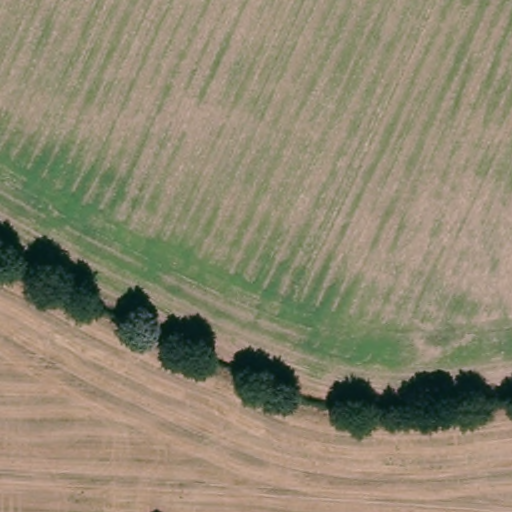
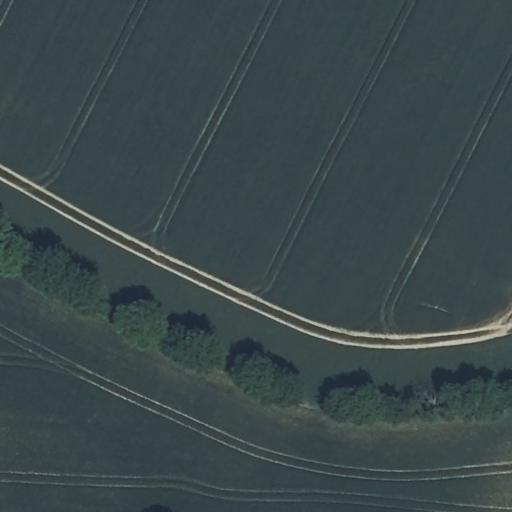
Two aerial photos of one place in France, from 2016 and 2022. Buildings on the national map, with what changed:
[]

